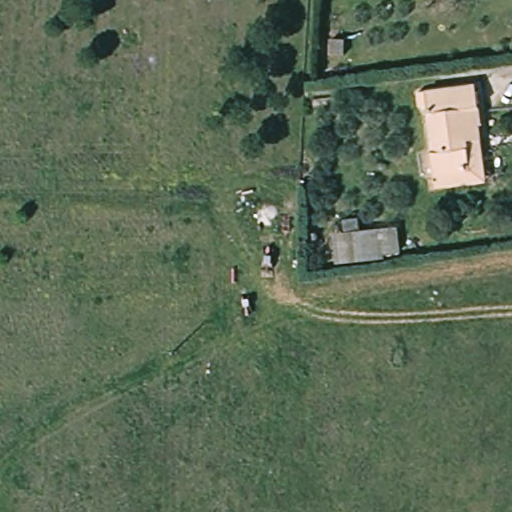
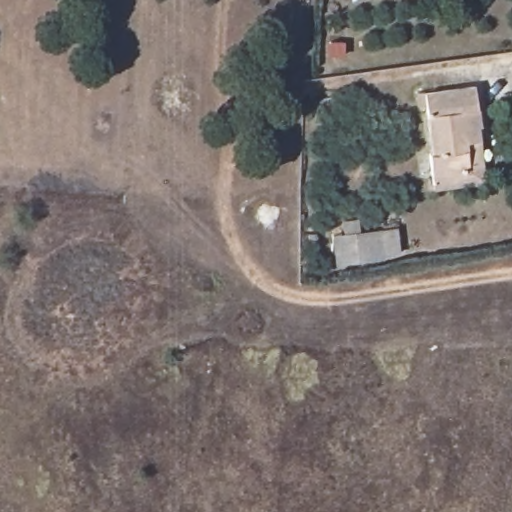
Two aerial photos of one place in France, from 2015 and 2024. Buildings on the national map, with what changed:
unchanged [(347,39),(348,55),(331,57),(330,41),(347,39)]
unchanged [(475,90),(480,129),(477,130),(480,147),(470,149),(472,178),(435,182),(432,161),(435,160),(427,97),(475,90)]
unchanged [(378,231),(382,255),(356,259),(355,234),(378,231)]

